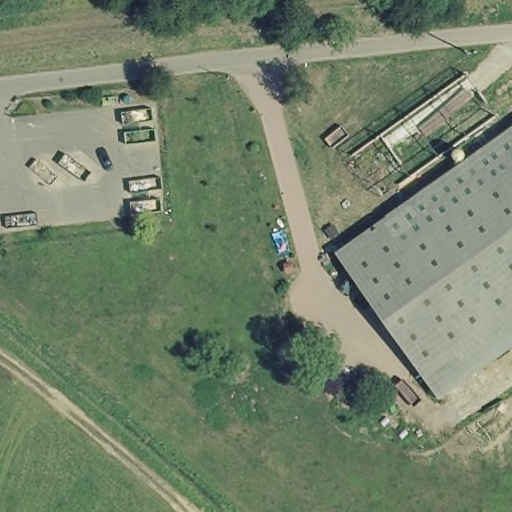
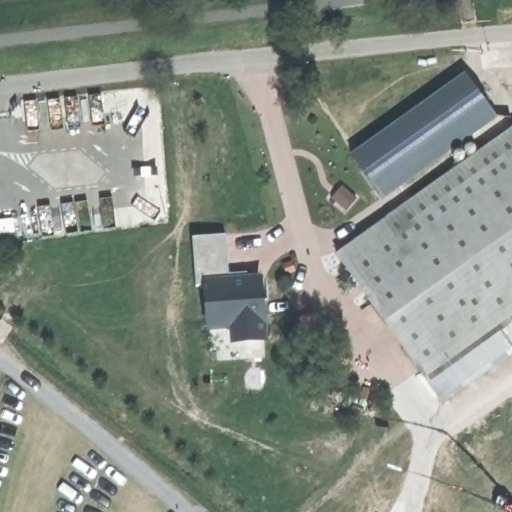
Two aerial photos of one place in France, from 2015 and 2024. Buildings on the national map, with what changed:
new [(466,74),(496,116),(382,198),(352,155),(466,74)]
unchanged [(512,125),(512,132),(508,127),(512,125)]
unchanged [(388,215),(398,229),(512,146),(512,317),(424,380),(336,255),(388,215)]
new [(226,235),(229,276),(262,274),(268,341),(231,344),(230,330),(206,331),(203,287),(197,287),(192,237),(226,235)]
unchanged [(437,397),(424,380),(512,317),(512,346),(437,397)]

